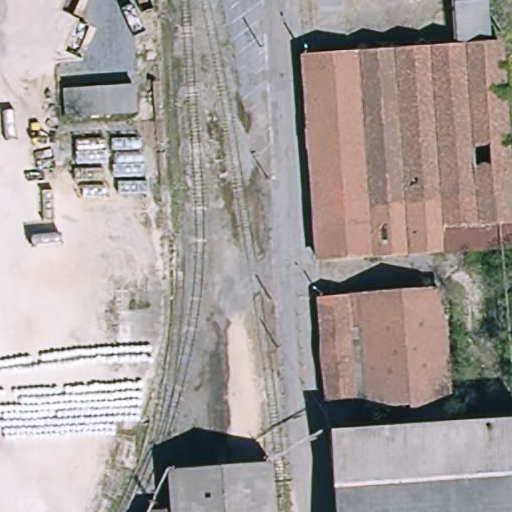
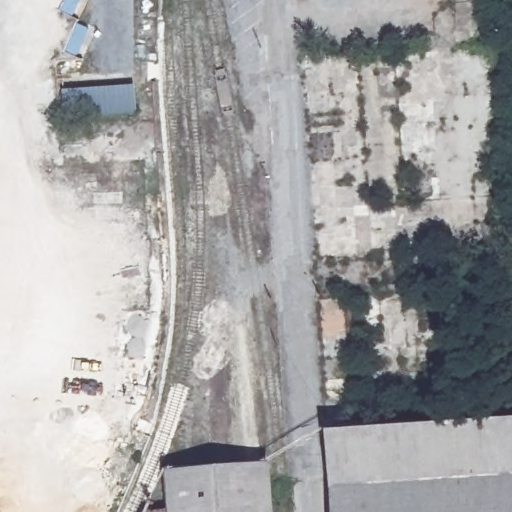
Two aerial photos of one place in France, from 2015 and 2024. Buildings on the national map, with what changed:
demolished [(457,46),(455,5),(486,4),(489,45),(457,46)]
demolished [(304,62),(500,49),(512,206),(512,247),(315,258),(304,62)]
unchanged [(134,84),(136,115),(68,118),(64,89),(134,84)]
demolished [(343,403),(342,393),(321,393),(315,296),(429,290),(437,396),(343,403)]
unchanged [(322,423),(512,412),(512,512),(328,512),(322,423)]
unchanged [(277,512),(174,512),(172,473),(273,467),(277,512)]

